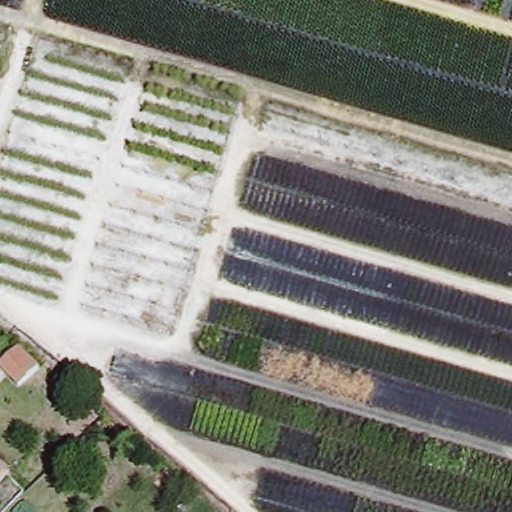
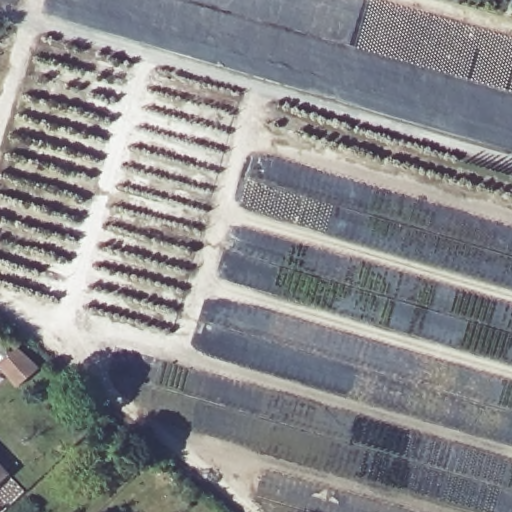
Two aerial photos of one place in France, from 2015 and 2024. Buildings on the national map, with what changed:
unchanged [(19,354),(35,373),(21,387),(4,368),(19,354)]
unchanged [(0,487),(0,466),(11,478),(0,487)]

